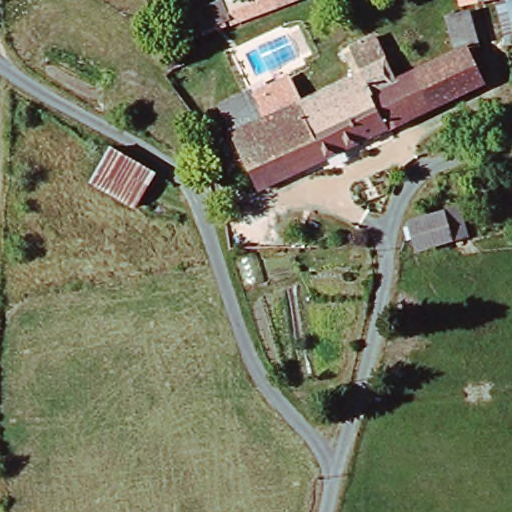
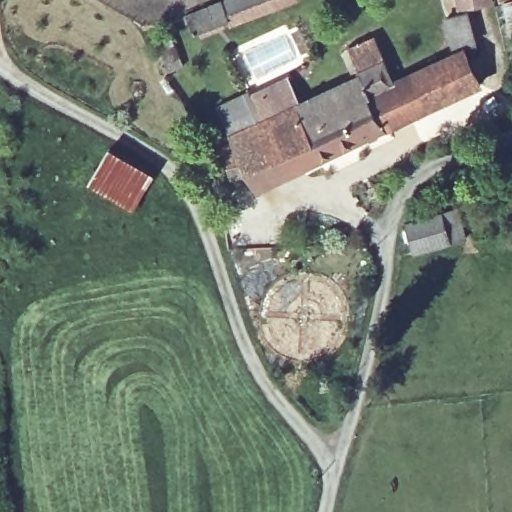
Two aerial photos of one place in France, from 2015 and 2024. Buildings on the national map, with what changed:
unchanged [(189,4),(200,0),(276,0),(217,21),(212,17),(197,24),(189,4)]
unchanged [(477,40),(466,43),(483,80),(255,189),(245,168),(231,174),(222,139),(232,135),(217,100),(248,85),(252,90),(285,74),(303,97),(356,70),(346,44),(375,30),(395,74),(456,49),(444,14),(461,8),(459,0),(482,0),(467,3),(477,40)]
unchanged [(499,0),(512,0),(512,47),(509,48),(499,0)]
unchanged [(110,143),(156,169),(135,205),(89,181),(110,143)]
unchanged [(455,240),(414,251),(405,218),(440,208),(460,202),(470,234),(455,240)]

